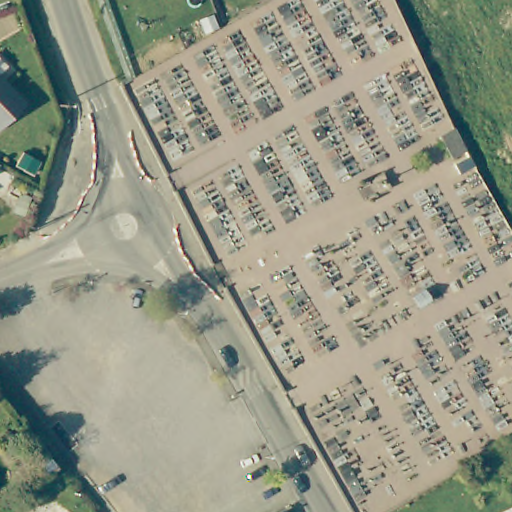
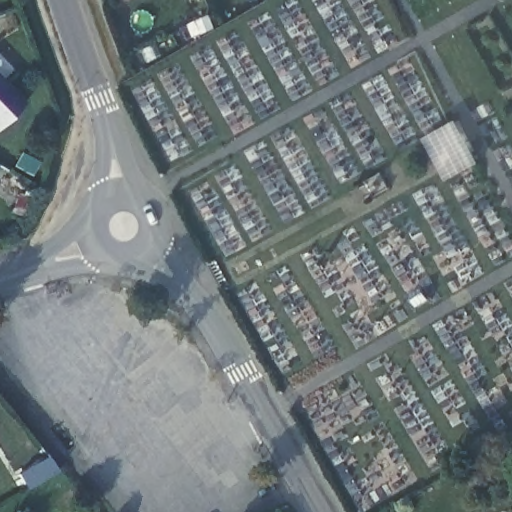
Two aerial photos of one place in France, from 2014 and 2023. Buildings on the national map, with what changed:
unchanged [(0,123),(0,76),(23,98),(0,123)]
new [(456,119),(478,162),(446,180),(423,139),(456,119)]
demolished [(441,136),(457,129),(468,152),(453,160),(441,136)]
unchanged [(55,477),(46,483),(32,467),(41,461),(55,477)]

